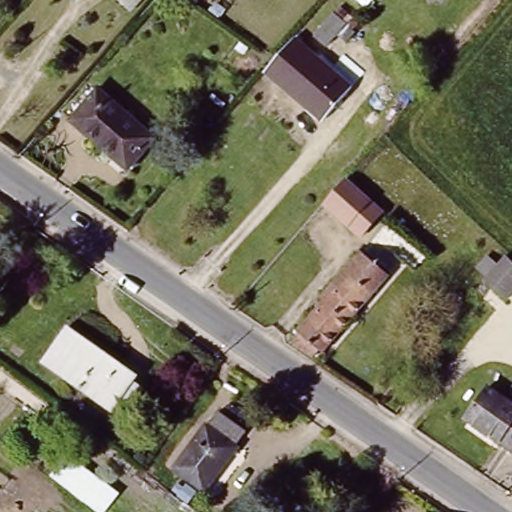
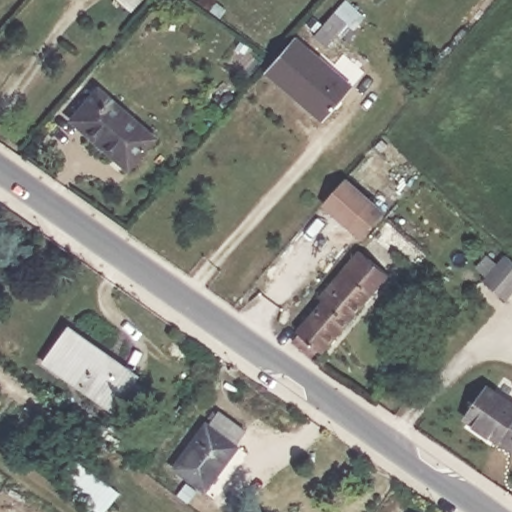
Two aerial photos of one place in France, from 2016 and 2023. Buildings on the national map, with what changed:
unchanged [(334,12),(345,22),(325,46),(313,36),(334,12)]
unchanged [(290,45),(348,93),(322,125),(263,76),(275,62),(290,45)]
unchanged [(125,174),(67,124),(93,92),(152,142),(125,174)]
unchanged [(340,191),(347,183),(382,214),(357,241),(323,211),(340,191)]
unchanged [(318,353),(313,359),(291,340),(325,299),(322,296),(344,270),(358,253),(387,280),(374,296),(323,357),(318,353)]
unchanged [(497,264),(506,255),(512,260),(512,294),(505,301),(483,281),(487,278),(475,268),(487,256),(497,264)]
unchanged [(125,419),(114,411),(109,418),(103,414),(40,366),(65,332),(135,384),(132,387),(143,395),(125,419)]
unchanged [(487,390),(512,410),(512,454),(509,458),(462,422),(487,390)]
unchanged [(242,433),(232,447),(235,449),(205,496),(172,474),(203,427),(207,430),(217,416),(242,433)]

